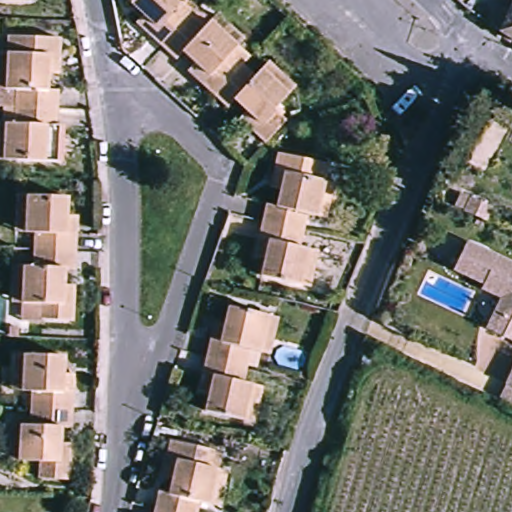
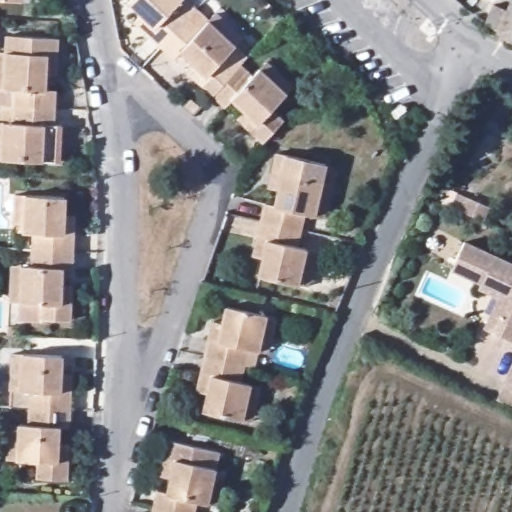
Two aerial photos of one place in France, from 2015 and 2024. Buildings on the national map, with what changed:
unchanged [(0,1),(0,0),(10,0),(10,2),(0,1)]
unchanged [(127,5),(131,0),(180,0),(173,7),(185,20),(157,50),(149,42),(133,27),(141,17),(127,5)]
unchanged [(512,5),(512,37),(500,28),(512,5)]
unchanged [(195,69),(179,54),(171,62),(157,50),(185,20),(198,32),(206,25),(212,19),(241,46),(235,51),(222,66),(233,75),(210,99),(201,90),(187,77),(195,69)]
unchanged [(3,95),(0,94),(0,60),(5,61),(7,41),(57,45),(55,64),(54,79),(42,79),(41,97),(54,97),(53,116),(13,112),(14,95),(3,95)]
unchanged [(246,116),(232,104),(224,112),(210,99),(233,75),(240,67),(251,77),(256,72),(262,66),(289,92),(284,97),(269,112),(282,125),(270,129),(257,142),(249,135),(238,125),(246,116)]
unchanged [(2,127),(11,127),(13,112),(53,116),(52,130),(50,150),(39,149),(38,167),(0,164),(0,126),(2,127)]
unchanged [(323,221),(308,215),(301,231),(257,219),(263,202),(274,206),(280,191),(267,186),(273,170),(279,152),(326,170),(321,183),(335,188),(323,221)]
unchanged [(72,239),(72,256),(32,253),(33,234),(25,233),(13,232),(15,201),(27,201),(62,202),(61,224),(73,224),(72,239)]
unchanged [(300,291),(289,287),(252,272),(258,257),(244,252),(250,236),(257,219),(301,231),(295,249),(302,252),(313,256),(300,291)]
unchanged [(512,300),(485,287),(487,283),(474,277),(457,269),(461,259),(470,242),(512,262),(512,339),(497,332),(512,300)]
unchanged [(67,307),(66,321),(39,320),(40,304),(18,303),(7,303),(9,267),(19,267),(32,267),(32,253),(72,256),(71,275),(58,274),(57,291),(67,291),(67,307)]
unchanged [(205,393),(194,391),(208,322),(223,322),(224,307),(275,317),(264,354),(245,351),(240,381),(256,386),(245,421),(200,412),(205,393)]
unchanged [(23,396),(9,395),(10,357),(24,357),(63,357),(62,373),(72,374),(72,392),(71,412),(32,411),(33,396),(23,396)]
unchanged [(512,379),(512,386),(509,385),(512,379)]
unchanged [(67,463),(67,481),(39,481),(39,462),(21,462),(9,462),(10,427),(22,427),(32,427),(32,411),(71,412),(71,431),(59,430),(58,447),(68,447),(67,463)]
unchanged [(214,512),(202,507),(198,507),(196,512),(150,512),(148,512),(154,495),(164,498),(171,478),(158,475),(163,457),(168,442),(218,458),(213,473),(225,477),(214,512)]

